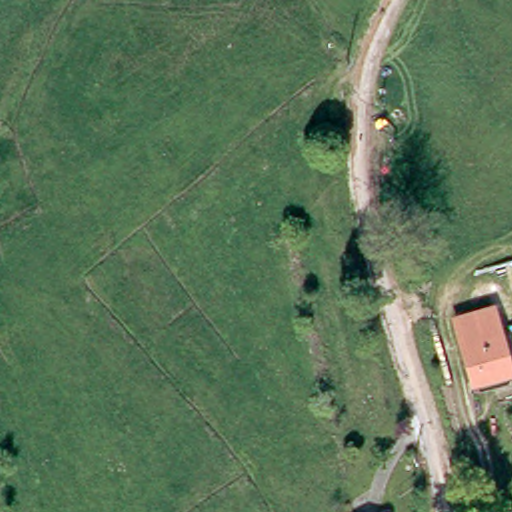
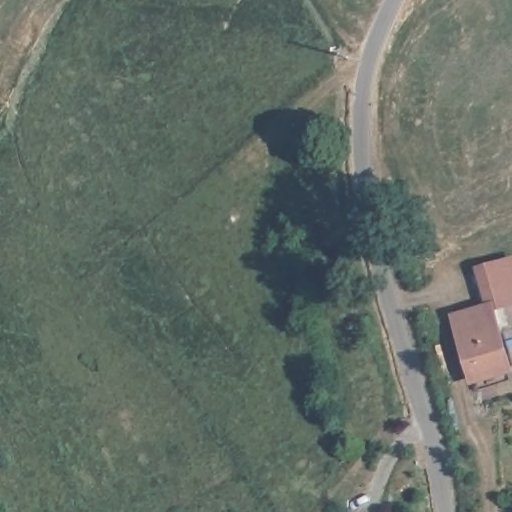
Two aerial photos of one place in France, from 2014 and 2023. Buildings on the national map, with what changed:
new [(499,312),(496,302),(486,306),(475,267),(512,257),(512,307),(499,312)]
unchanged [(512,359),(512,371),(470,385),(450,317),(496,302),(512,359)]

